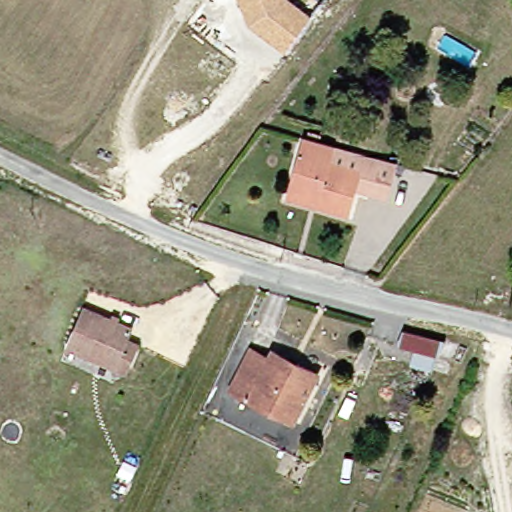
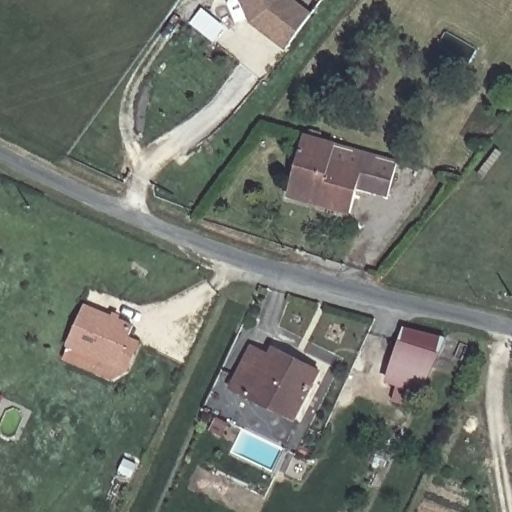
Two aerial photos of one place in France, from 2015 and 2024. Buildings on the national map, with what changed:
unchanged [(312,13),(286,51),(251,24),(240,0),(296,0),(312,13)]
unchanged [(292,181),(307,132),(406,162),(392,198),(362,189),(356,209),(319,200),(289,192),(292,181)]
unchanged [(68,346),(84,305),(133,324),(129,338),(140,342),(131,371),(118,365),(68,346)]
demolished [(460,366),(454,363),(408,341),(420,320),(464,341),(472,344),(460,366)]
new [(404,328),(443,338),(421,394),(385,383),(404,328)]
unchanged [(300,420),(240,385),(262,345),(279,357),(284,348),(310,364),(325,373),(300,420)]

